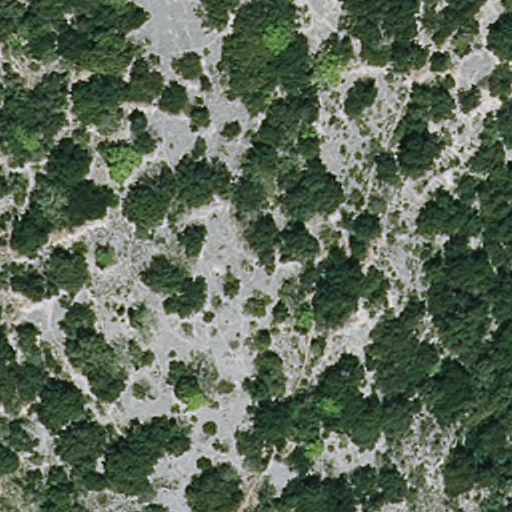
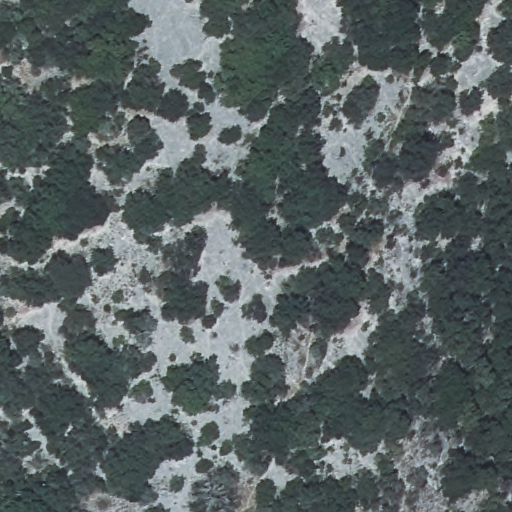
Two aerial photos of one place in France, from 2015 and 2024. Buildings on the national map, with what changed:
[]

